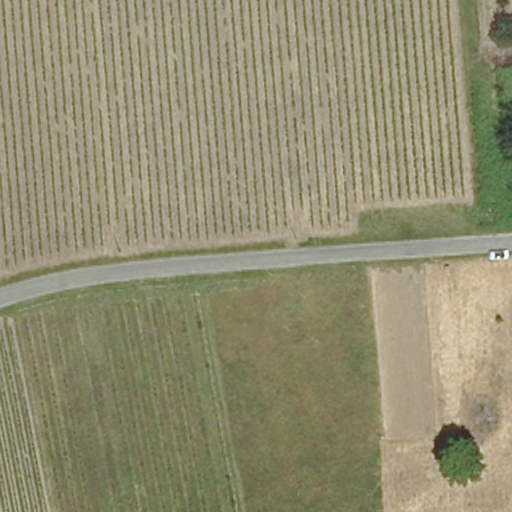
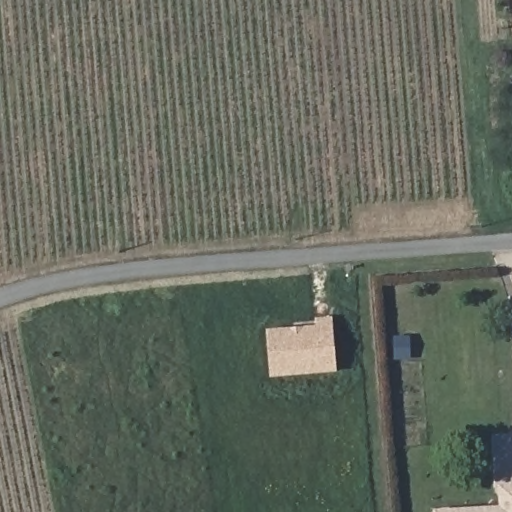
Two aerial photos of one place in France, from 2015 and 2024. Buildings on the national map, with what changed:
new [(272,378),(268,330),(316,326),(316,319),(334,317),(338,372),(272,378)]
new [(435,509),(501,505),(499,484),(512,483),(512,512),(435,512),(435,509)]

